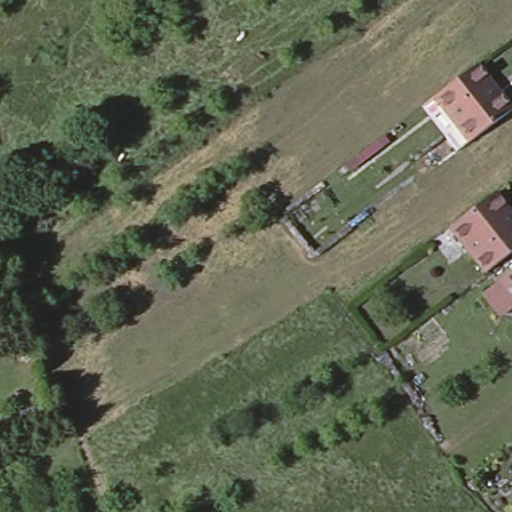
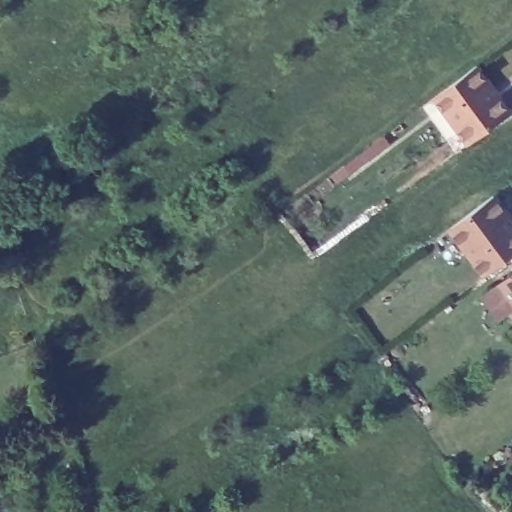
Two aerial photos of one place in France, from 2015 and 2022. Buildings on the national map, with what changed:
unchanged [(426,96),(467,65),(502,111),(461,142),(426,96)]
unchanged [(490,191),(512,220),(512,221),(512,246),(481,270),(461,243),(447,224),(485,195),(490,191)]
unchanged [(501,316),(486,297),(499,287),(512,276),(512,307),(501,316)]

